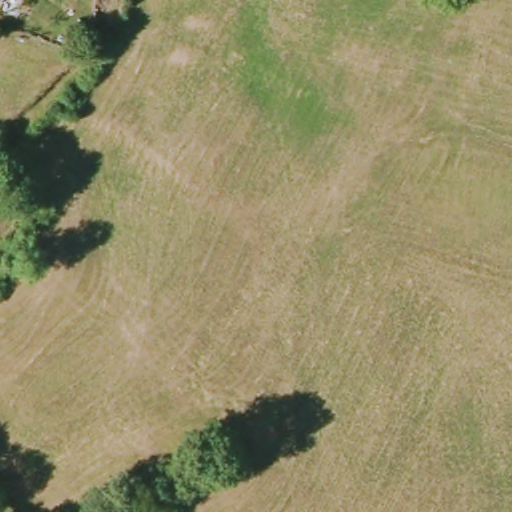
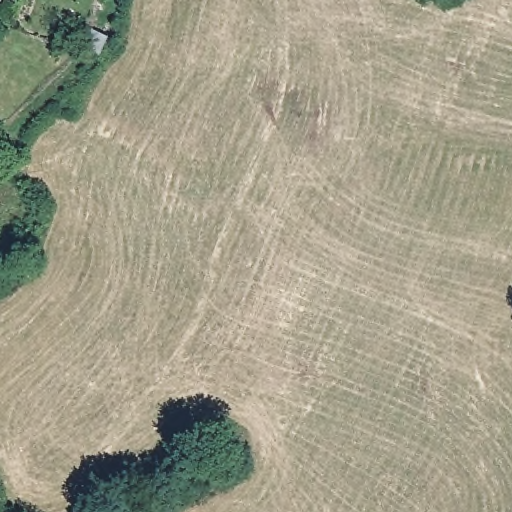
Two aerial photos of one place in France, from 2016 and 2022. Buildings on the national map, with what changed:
unchanged [(5,0),(22,0),(17,17),(2,11),(5,0)]

